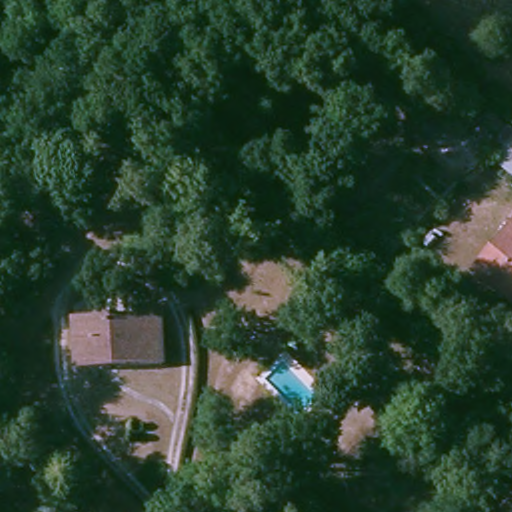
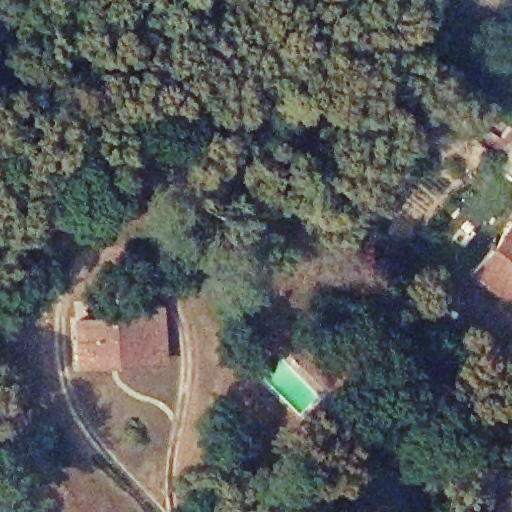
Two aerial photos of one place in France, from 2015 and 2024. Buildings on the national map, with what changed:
unchanged [(512,122),(512,173),(488,153),(510,120),(512,122)]
unchanged [(70,246),(45,276),(16,251),(40,221),(70,246)]
unchanged [(512,222),(512,295),(477,268),(512,222)]
unchanged [(72,317),(132,316),(132,303),(162,303),(164,367),(74,364),(72,317)]

